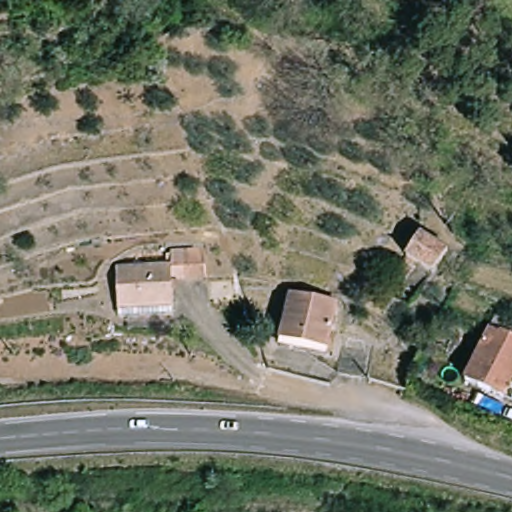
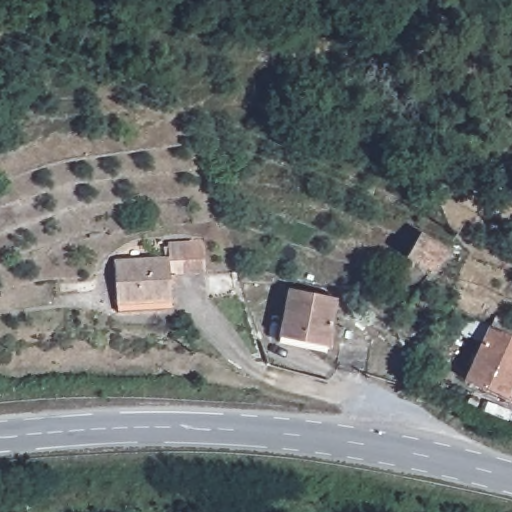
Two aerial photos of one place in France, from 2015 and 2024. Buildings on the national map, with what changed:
unchanged [(425,236),(449,251),(438,269),(413,255),(425,236)]
unchanged [(120,317),(118,301),(115,261),(172,255),(171,239),(208,237),(212,269),(172,272),(174,296),(175,310),(120,317)]
unchanged [(325,352),(279,342),(290,294),(336,304),(325,352)]
unchanged [(512,332),(512,390),(510,394),(473,377),(497,326),(512,332)]
unchanged [(357,379),(332,373),(338,350),(363,355),(357,379)]

